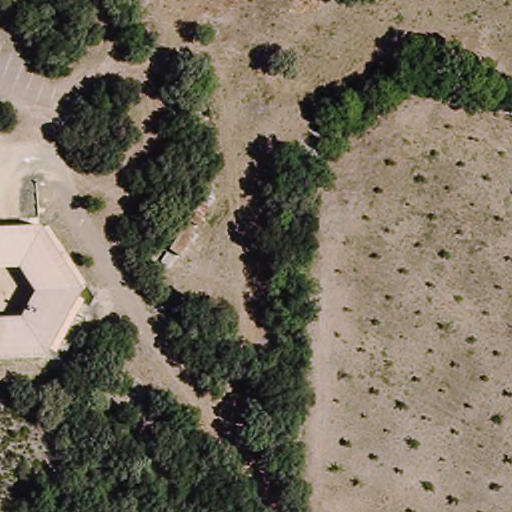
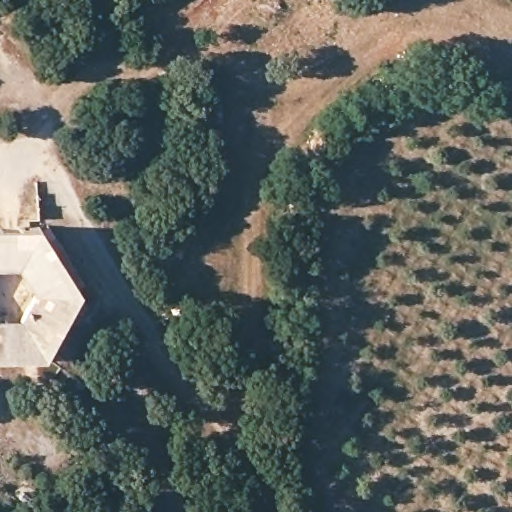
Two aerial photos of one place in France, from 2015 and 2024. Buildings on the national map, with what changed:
unchanged [(78,286),(43,356),(0,357),(0,315),(16,314),(30,288),(15,265),(0,267),(0,226),(37,226),(78,286)]

